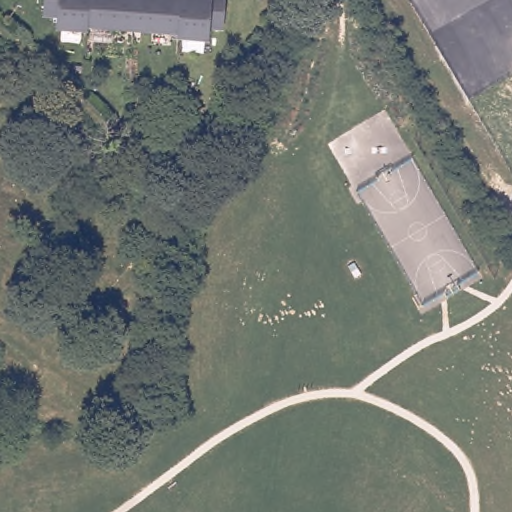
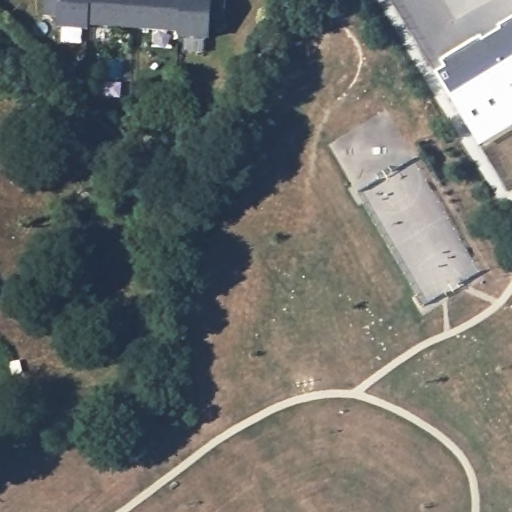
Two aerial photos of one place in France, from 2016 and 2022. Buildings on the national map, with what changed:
unchanged [(214,28),(213,39),(182,37),(182,32),(137,29),(93,26),(92,31),(61,28),(62,17),(48,16),(49,0),(229,0),(228,29),(214,28)]
new [(434,72),(442,67),(439,60),(479,36),(481,40),(498,30),(496,27),(512,18),(512,124),(479,145),(434,72)]

